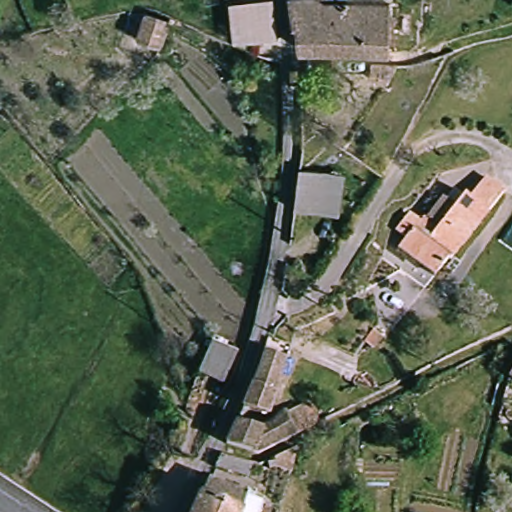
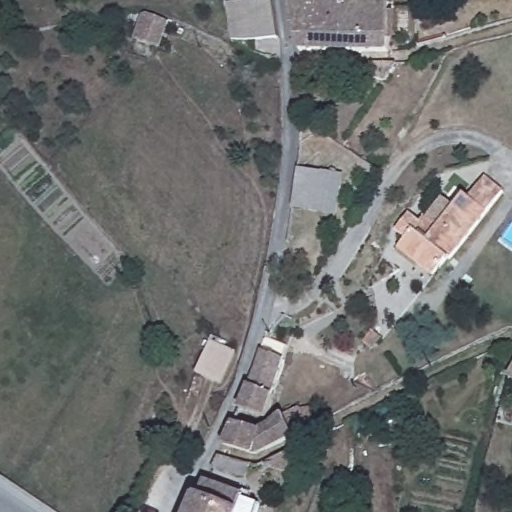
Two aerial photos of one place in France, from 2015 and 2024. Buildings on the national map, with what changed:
unchanged [(275,0),(283,64),(250,53),(248,43),(235,44),(230,5),(264,0),(275,0)]
unchanged [(373,52),(300,46),(293,0),(333,0),(336,5),(397,10),(397,51),(373,52)]
unchanged [(166,25),(164,50),(144,48),(146,24),(166,25)]
unchanged [(369,64),(397,59),(387,77),(366,78),(369,64)]
unchanged [(296,211),(301,171),(322,176),(343,179),(336,220),(315,216),(296,211)]
unchanged [(453,263),(449,260),(435,280),(397,253),(404,240),(394,233),(408,214),(432,231),(461,189),(468,194),(482,174),(504,190),(453,263)]
unchanged [(267,338),(293,350),(269,422),(243,414),(248,391),(267,338)]
unchanged [(223,386),(196,375),(210,344),(237,354),(223,386)]
unchanged [(509,381),(512,374),(512,383),(509,381)]
unchanged [(304,417),(313,433),(261,460),(260,460),(256,457),(229,445),(238,424),(270,436),(304,417)]
unchanged [(272,512),(191,512),(204,482),(249,499),(248,501),(262,507),(272,511),(272,512)]

